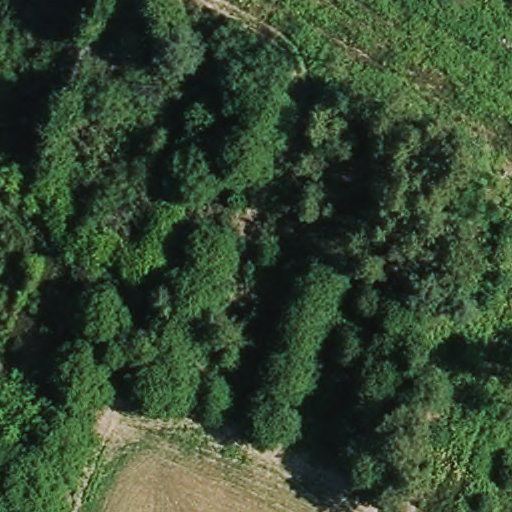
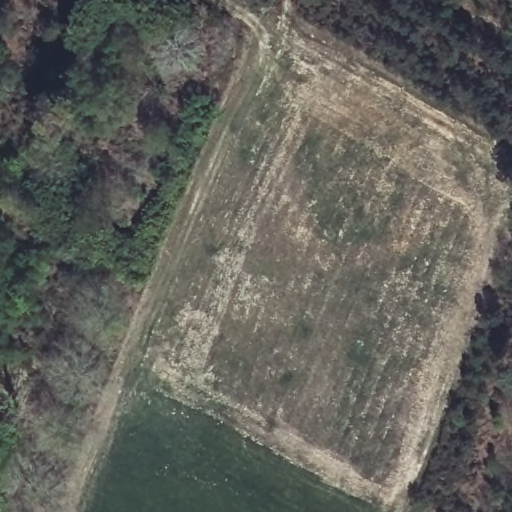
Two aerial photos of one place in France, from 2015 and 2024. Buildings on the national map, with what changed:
unchanged [(146,190),(128,181),(146,145),(164,153),(146,190)]

